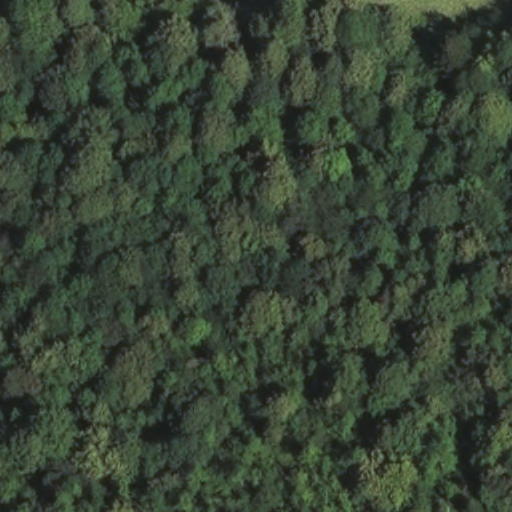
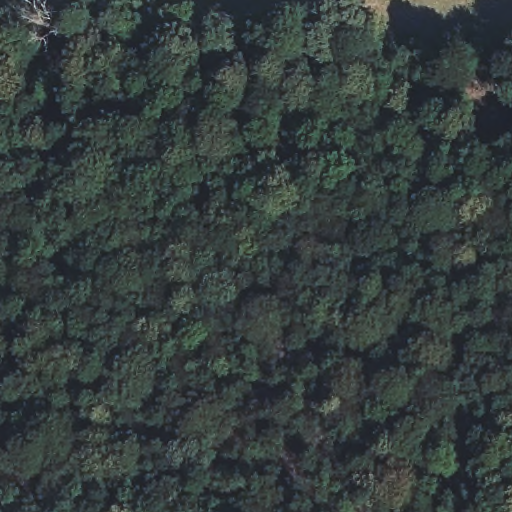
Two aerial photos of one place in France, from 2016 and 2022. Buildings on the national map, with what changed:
[]

